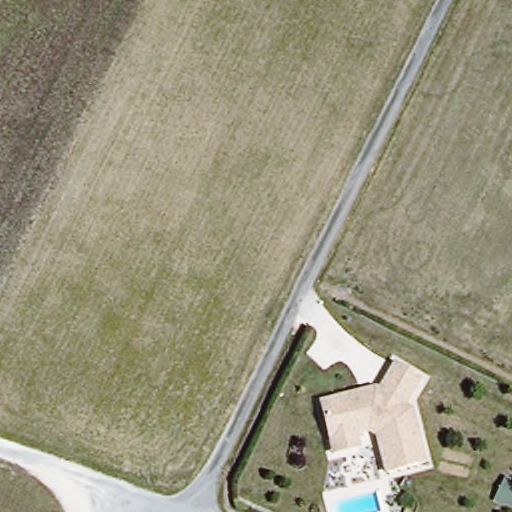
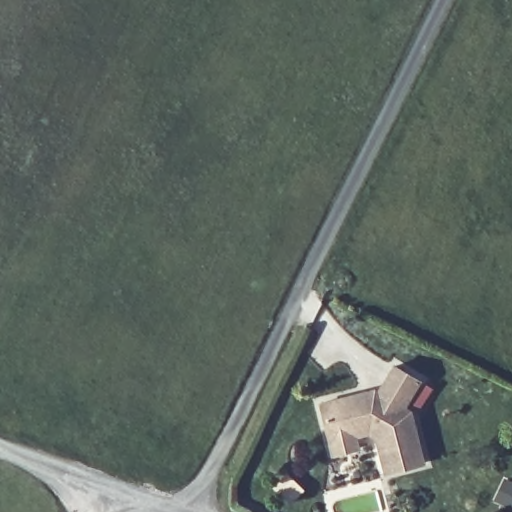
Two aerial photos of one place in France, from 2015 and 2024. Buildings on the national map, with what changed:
unchanged [(340,456),(336,443),(325,404),(382,388),(384,394),(400,364),(426,380),(410,407),(412,413),(417,412),(431,463),(394,473),(383,437),(375,432),(360,436),(365,448),(340,456)]
unchanged [(510,467),(512,469),(512,495),(499,489),(510,467)]

